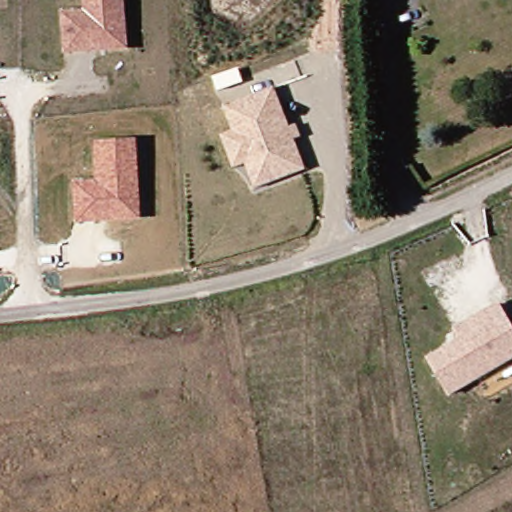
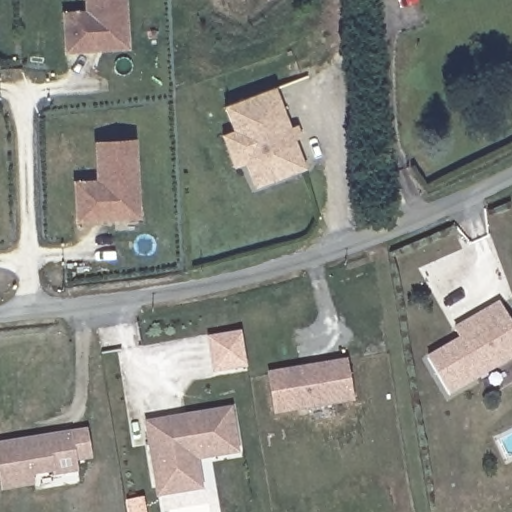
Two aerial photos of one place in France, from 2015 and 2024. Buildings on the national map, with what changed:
unchanged [(91,48),(67,50),(65,11),(87,10),(87,0),(125,0),(127,36),(129,47),(91,48)]
unchanged [(236,168),(224,136),(235,132),(226,107),(240,103),(276,89),(292,129),(299,126),(304,138),(296,141),(308,170),(258,189),(248,164),(244,166),(236,168)]
unchanged [(140,218),(73,223),(71,180),(94,179),(91,141),(134,138),(140,218)]
unchanged [(455,330),(485,311),(500,302),(512,322),(512,356),(450,394),(429,359),(460,339),(455,330)]
new [(242,332),(248,364),(216,369),(211,337),(242,332)]
new [(268,374),(346,361),(353,402),(274,415),(268,374)]
new [(144,422),(231,408),(239,456),(200,462),(205,490),(157,499),(144,422)]
new [(0,484),(0,442),(87,430),(94,460),(77,463),(79,473),(53,477),(52,474),(35,477),(36,487),(1,492),(0,484)]

